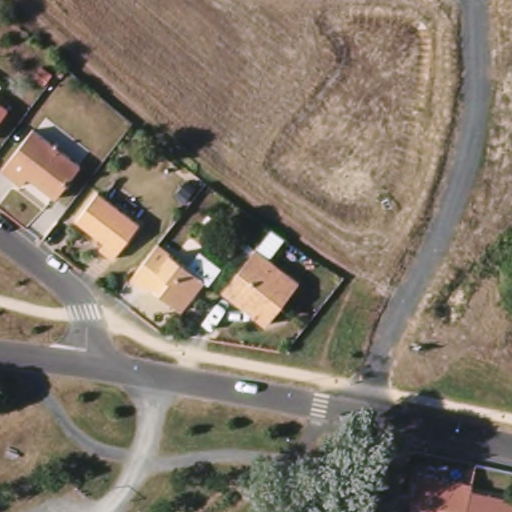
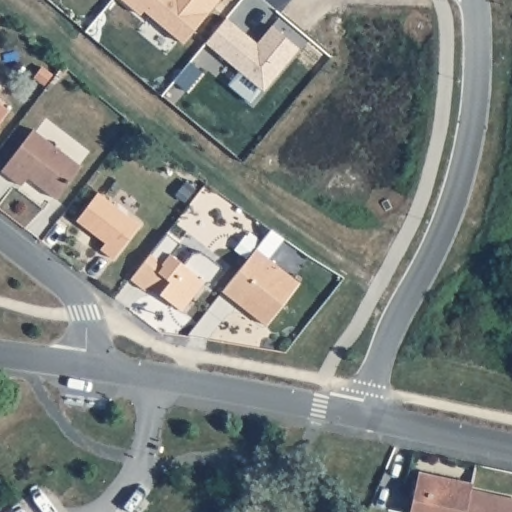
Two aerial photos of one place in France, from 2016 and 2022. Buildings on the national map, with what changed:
new [(142,9),(139,13),(123,0),(217,0),(182,41),(142,9)]
new [(256,42),(271,24),(298,47),(262,89),(217,51),(206,41),(226,16),(238,26),(252,38),(256,42)]
unchanged [(0,118),(0,103),(7,109),(0,118)]
unchanged [(84,166),(57,199),(30,178),(23,186),(6,172),(37,130),(84,166)]
unchanged [(143,224),(116,257),(104,247),(108,242),(81,219),(103,192),(143,224)]
unchanged [(227,292),(258,250),(276,228),(288,237),(271,259),(302,284),(270,325),(255,314),(239,301),(227,292)]
unchanged [(196,253),(217,272),(205,287),(199,282),(174,311),(144,287),(138,293),(125,282),(145,257),(154,245),(166,254),(182,269),(196,253)]
unchanged [(473,489),(472,494),(512,503),(512,512),(414,512),(421,478),(473,489)]

